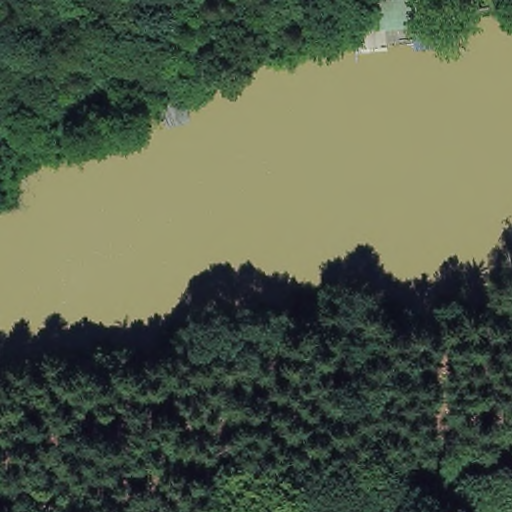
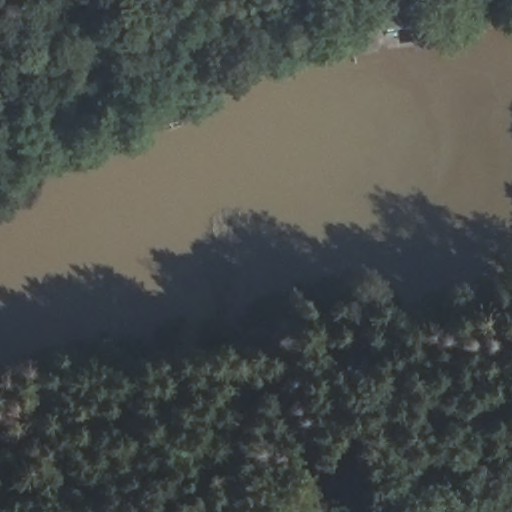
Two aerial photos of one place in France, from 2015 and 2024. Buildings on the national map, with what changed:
unchanged [(407,11),(409,0),(424,0),(424,11),(407,11)]

